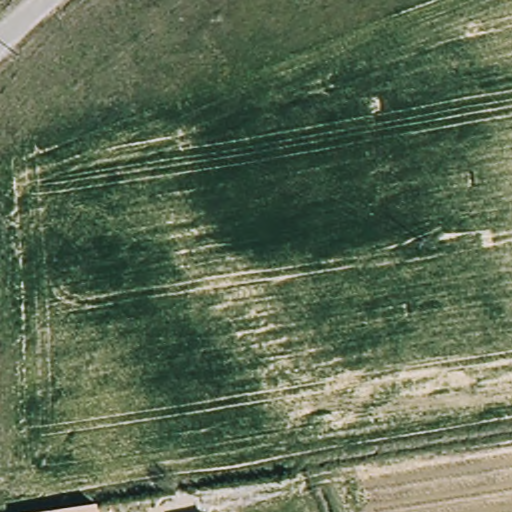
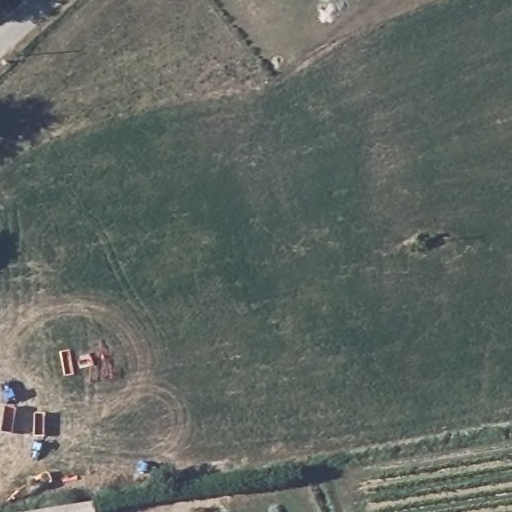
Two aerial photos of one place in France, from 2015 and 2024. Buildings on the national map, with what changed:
unchanged [(97,512),(49,512),(96,504),(97,512)]

